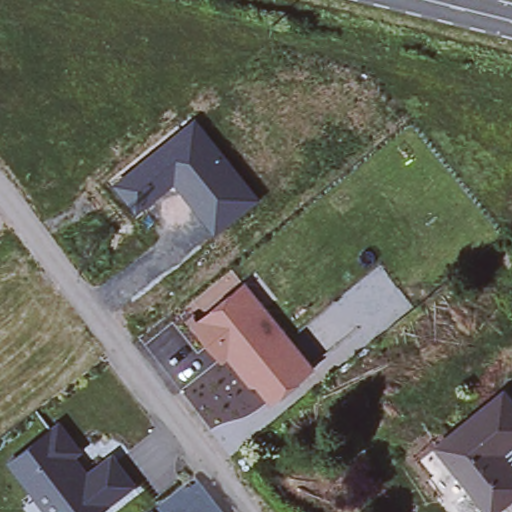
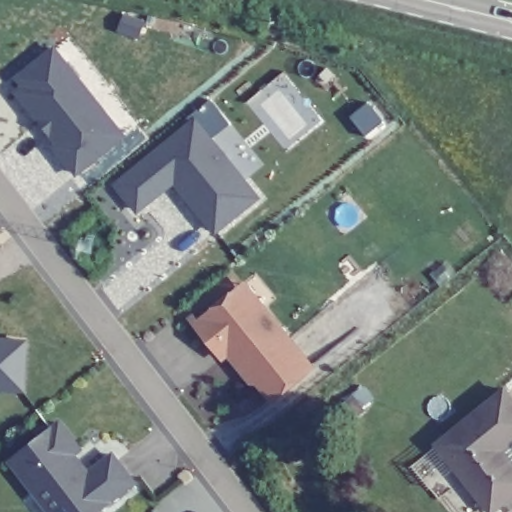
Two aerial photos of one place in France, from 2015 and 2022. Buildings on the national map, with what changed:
new [(51,148),(55,145),(11,92),(20,87),(13,77),(56,44),(126,137),(76,178),(51,148)]
unchanged [(138,215),(113,184),(196,116),(262,198),(215,237),(175,186),(138,215)]
unchanged [(313,369),(268,407),(226,359),(220,363),(192,329),(247,283),(313,369)]
new [(21,390),(0,390),(0,342),(23,342),(21,390)]
unchanged [(492,451),(512,477),(512,491),(487,512),(479,512),(427,447),(495,392),(512,414),(512,435),(492,451)]
unchanged [(122,445),(145,475),(103,512),(43,512),(7,466),(62,421),(96,464),(122,445)]

